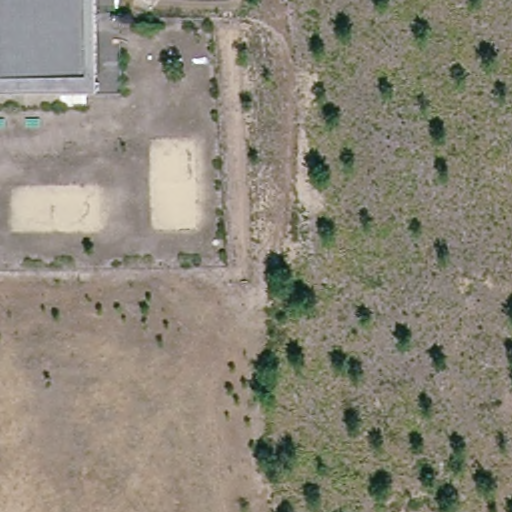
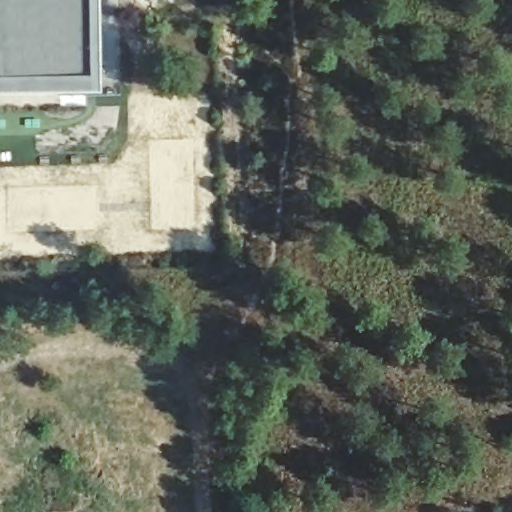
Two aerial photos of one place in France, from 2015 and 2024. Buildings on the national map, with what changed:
unchanged [(0,76),(0,0),(107,0),(108,75),(0,76)]
unchanged [(109,89),(0,91),(0,76),(108,75),(109,89)]

